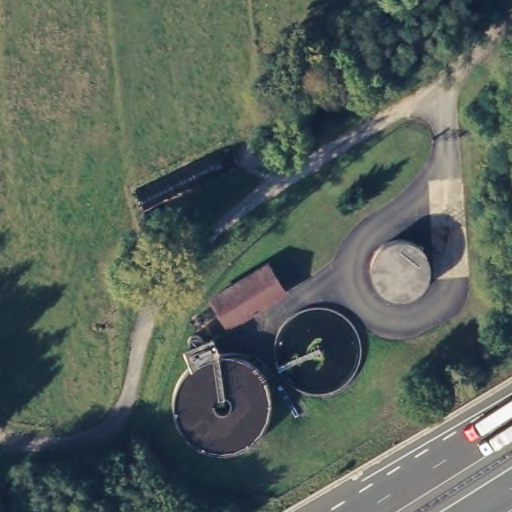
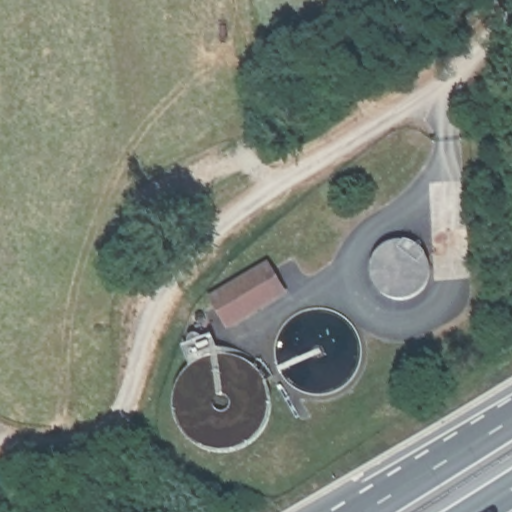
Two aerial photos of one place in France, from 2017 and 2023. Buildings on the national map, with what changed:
unchanged [(456,236),(441,235),(440,203),(454,202),(456,236)]
unchanged [(405,238),(412,241),(417,245),(422,249),(425,254),(427,260),(427,263),(427,268),(426,274),(423,280),(420,285),(414,288),(409,291),(403,293),(397,293),(386,289),(382,287),(379,283),(377,279),(374,276),(372,270),(372,265),(371,261),(374,254),(377,248),(380,245),(384,241),(387,240),(391,239),(396,237),(405,238)]
unchanged [(207,291),(262,257),(286,289),(229,322),(207,291)]

